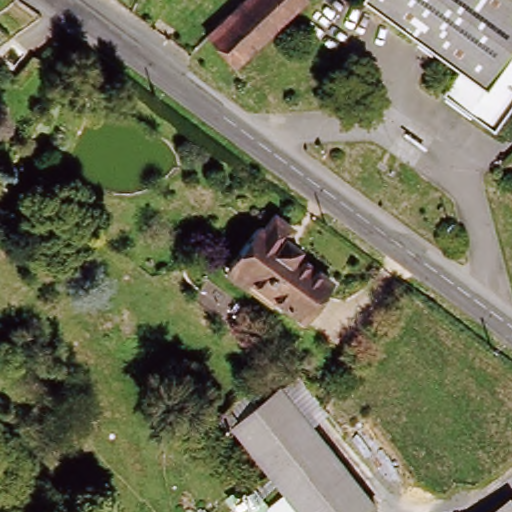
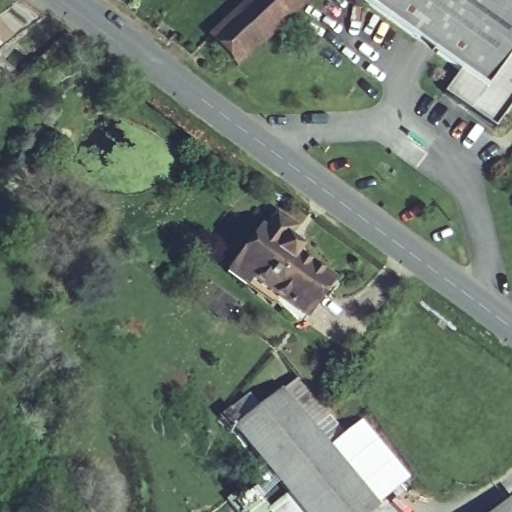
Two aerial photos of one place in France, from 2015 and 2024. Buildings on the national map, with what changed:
unchanged [(210,32),(208,30),(241,0),(304,0),(236,61),(210,32)]
unchanged [(446,96),(462,75),(363,6),(367,0),(511,0),(512,1),(512,107),(496,130),(446,96)]
unchanged [(302,325),(230,272),(258,233),(262,235),(275,219),(294,232),(284,245),(300,255),(296,261),(330,286),(302,325)]
unchanged [(268,512),(240,512),(232,500),(252,487),(255,485),(269,505),(284,493),(234,430),(231,432),(219,416),(231,405),(242,418),(298,376),(330,414),(315,427),(379,503),(368,512),(271,512),(270,511),(268,512)]
new [(379,503),(315,427),(330,414),(345,434),(362,421),(410,479),(379,503)]
unchanged [(512,512),(494,512),(512,498),(512,512)]

